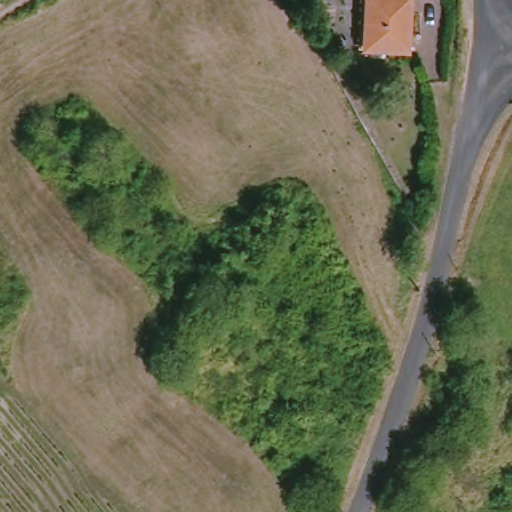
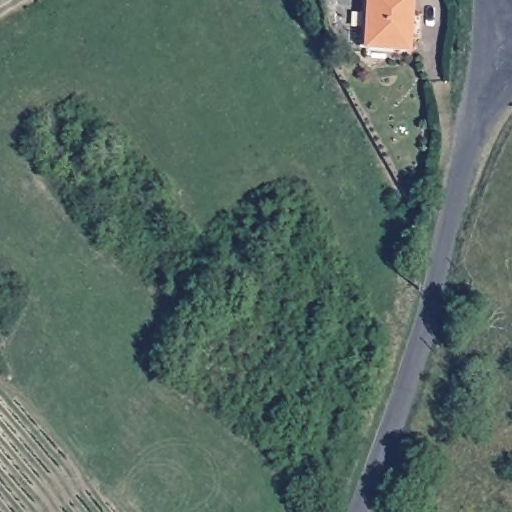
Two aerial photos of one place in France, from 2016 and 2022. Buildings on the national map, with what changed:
unchanged [(407,0),(402,54),(361,50),(364,0),(407,0)]

